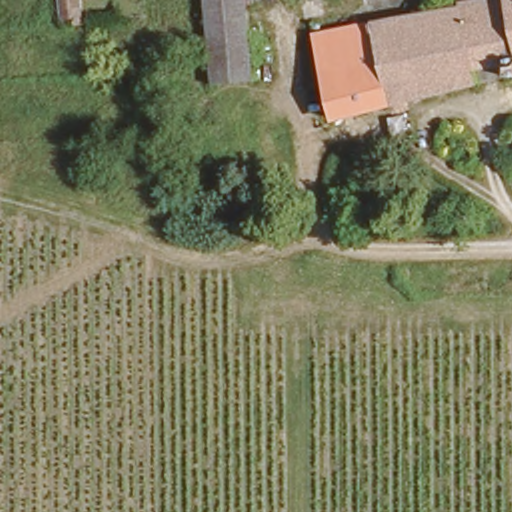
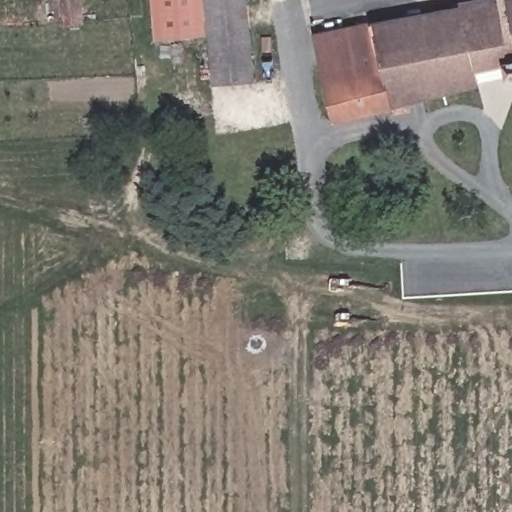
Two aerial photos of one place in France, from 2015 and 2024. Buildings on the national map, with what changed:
unchanged [(78,15),(60,15),(59,0),(77,0),(78,15)]
new [(212,34),(155,40),(151,0),(208,0),(212,34)]
unchanged [(253,79),(218,82),(208,0),(245,0),(253,79)]
unchanged [(461,0),(512,0),(512,74),(504,76),(501,62),(472,67),(475,82),(332,112),(317,28),(462,5),(461,0)]

